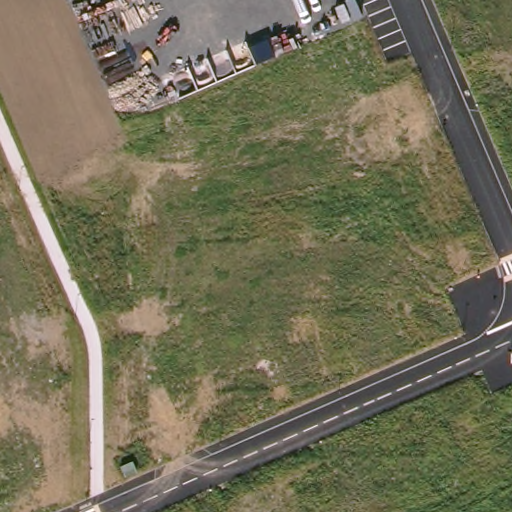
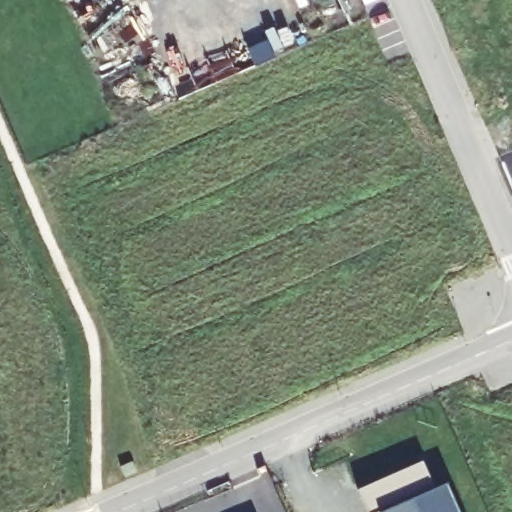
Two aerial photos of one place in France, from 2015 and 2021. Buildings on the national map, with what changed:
new [(267,40),(274,58),(254,66),(247,49),(267,40)]
new [(458,512),(367,512),(358,489),(422,462),(434,489),(446,485),(458,512)]

